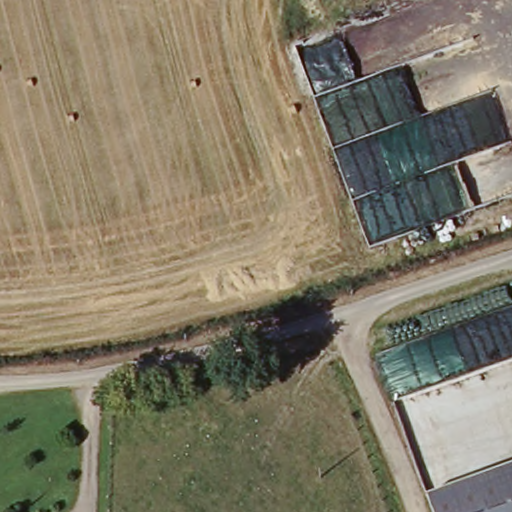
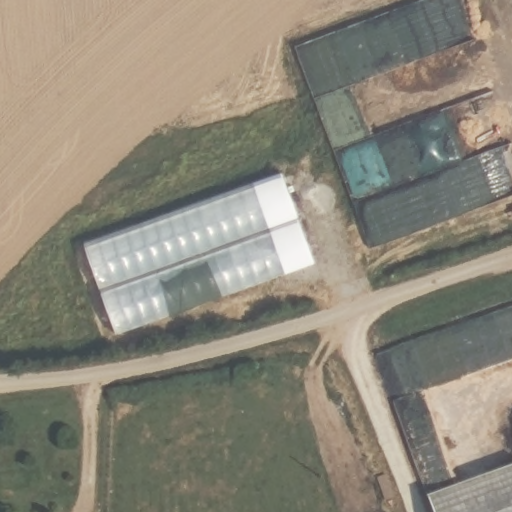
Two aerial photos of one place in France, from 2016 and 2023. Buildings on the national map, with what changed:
new [(284,175),(315,262),(117,334),(85,242),(284,175)]
unchanged [(512,465),(512,512),(436,512),(429,494),(512,465)]

